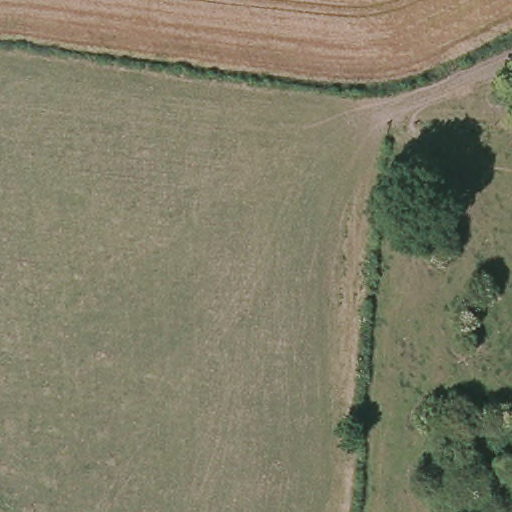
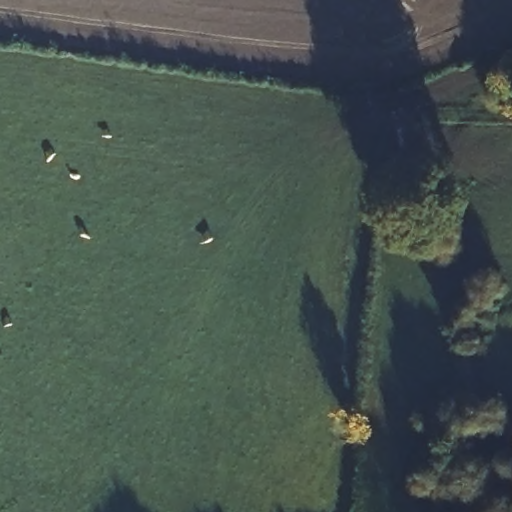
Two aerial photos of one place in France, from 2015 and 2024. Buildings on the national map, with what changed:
[]

